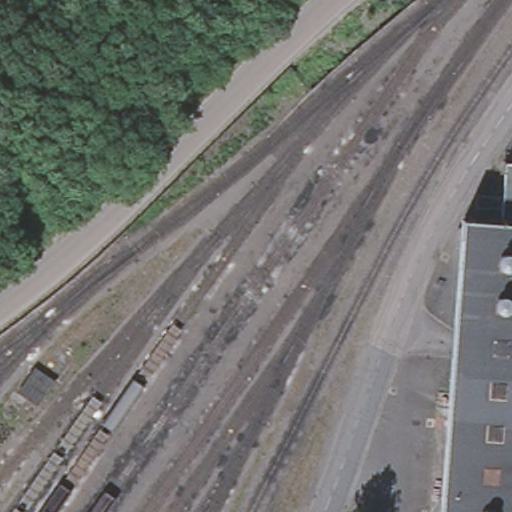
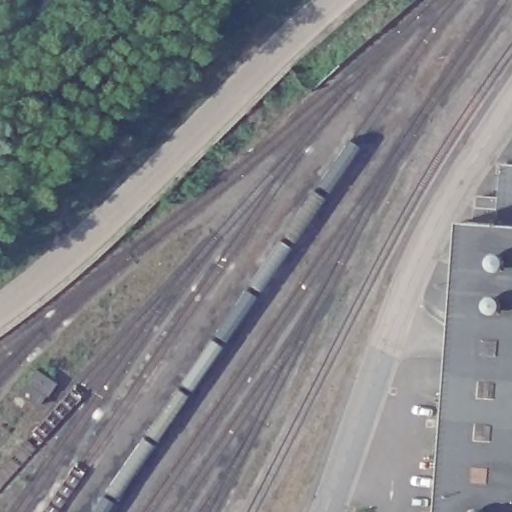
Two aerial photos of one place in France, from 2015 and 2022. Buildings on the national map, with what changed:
unchanged [(462,227),(473,229),(475,204),(504,206),(507,171),(512,171),(512,512),(441,512),(462,227)]
unchanged [(50,392),(28,378),(35,366),(57,379),(50,392)]
unchanged [(10,427),(0,420),(0,413),(16,391),(29,401),(10,427)]

